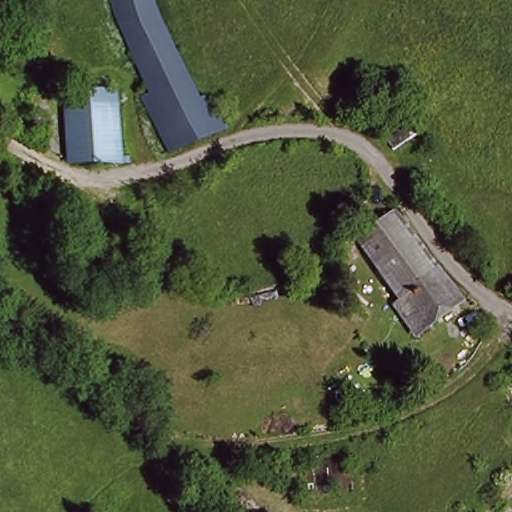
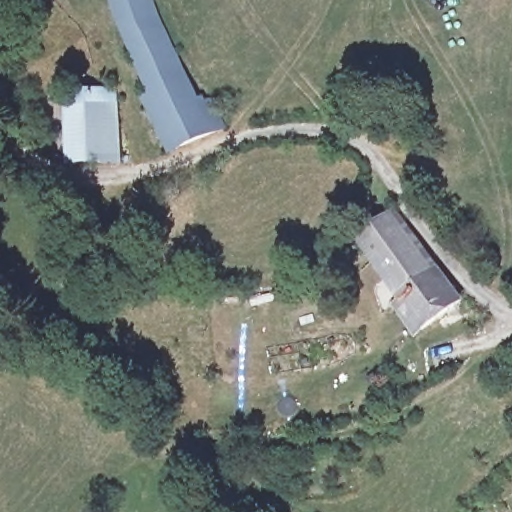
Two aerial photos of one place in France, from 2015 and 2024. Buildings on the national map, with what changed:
unchanged [(162,67),(142,76),(117,21),(107,0),(147,0),(175,61),(162,67)]
unchanged [(167,149),(142,99),(150,95),(142,76),(162,67),(175,61),(197,106),(207,101),(218,126),(167,149)]
unchanged [(70,96),(117,95),(112,166),(70,163),(70,96)]
unchanged [(395,210),(418,240),(452,285),(464,300),(419,335),(396,306),(402,301),(356,242),(395,210)]

